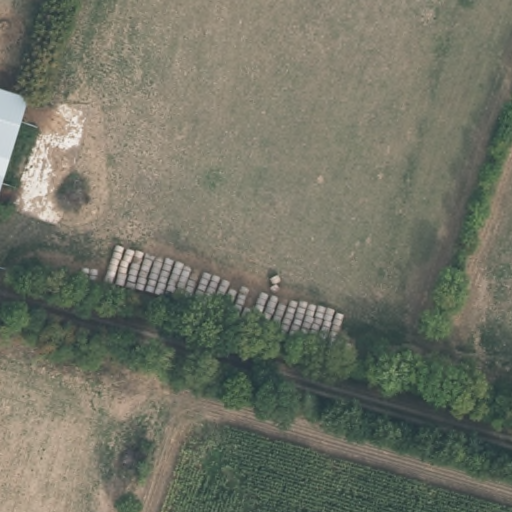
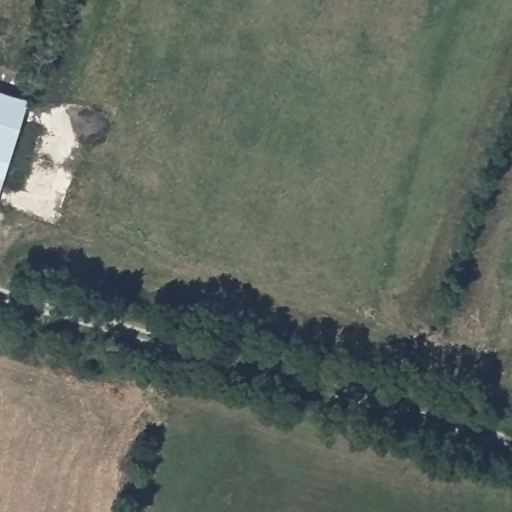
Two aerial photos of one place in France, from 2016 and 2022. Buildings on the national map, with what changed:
unchanged [(23,104),(0,192),(0,97),(23,104)]

